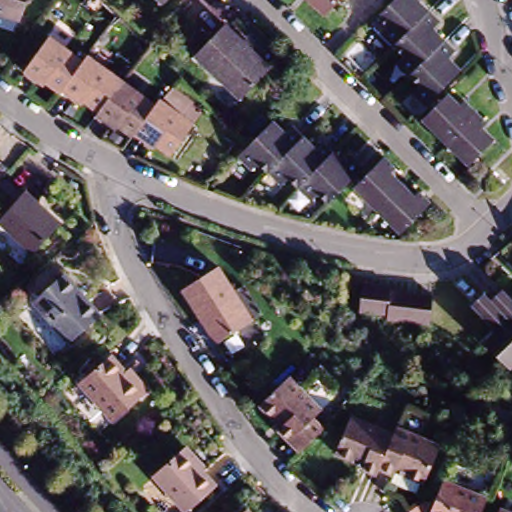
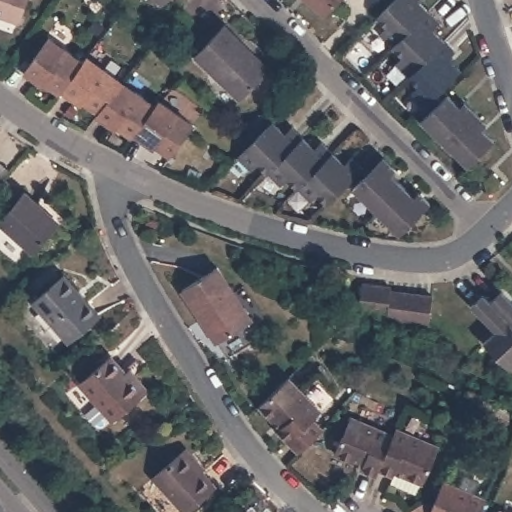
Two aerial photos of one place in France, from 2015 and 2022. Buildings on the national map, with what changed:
unchanged [(0,20),(0,0),(29,0),(19,26),(0,20)]
unchanged [(157,0),(168,0),(162,5),(157,0)]
unchanged [(301,0),(335,0),(320,16),(301,0)]
unchanged [(437,29),(432,35),(453,57),(447,63),(457,75),(422,109),(412,98),(418,92),(396,70),(402,64),(377,39),(384,31),(372,19),(375,16),(392,0),(415,0),(412,3),(437,29)]
unchanged [(240,100),(195,56),(225,24),(271,69),(240,100)]
unchanged [(32,78),(30,81),(17,72),(42,36),(77,60),(56,90),(54,93),(32,78)]
unchanged [(93,111),(72,96),(70,99),(56,90),(77,60),(80,54),(115,79),(93,111)]
unchanged [(151,103),(130,134),(128,136),(107,121),(105,124),(90,115),(93,111),(115,79),(151,103)]
unchanged [(190,122),(167,156),(145,141),(144,144),(130,134),(151,103),(155,98),(190,122)]
unchanged [(467,171),(420,124),(447,98),(460,111),(464,106),(485,128),(481,132),(494,144),(467,171)]
unchanged [(283,132),(290,125),(312,147),(319,141),(340,163),(348,156),(360,168),(325,203),(312,190),(305,197),(283,175),(275,183),(255,161),(248,168),(237,156),(241,151),(251,141),(272,120),(283,132)]
unchanged [(399,233),(350,187),(380,156),(392,167),(388,172),(414,196),(418,191),(429,202),(399,233)]
unchanged [(33,254),(0,224),(0,220),(25,191),(60,223),(33,254)]
unchanged [(217,345),(205,328),(207,326),(204,320),(201,322),(180,292),(216,269),(252,322),(217,345)]
unchanged [(29,301),(62,273),(97,316),(67,344),(29,301)]
unchanged [(429,328),(387,322),(387,320),(359,315),(362,288),(390,292),(390,293),(432,300),(429,328)]
unchanged [(477,342),(489,330),(465,305),(477,293),(485,301),(498,290),(512,305),(512,358),(501,368),(477,342)]
unchanged [(78,385),(110,357),(125,375),(130,371),(147,391),(143,395),(112,423),(78,385)]
unchanged [(261,404),(287,379),(319,411),(312,420),(321,430),(315,436),(301,451),(280,429),(282,426),(275,418),(261,404)]
unchanged [(337,451),(351,418),(394,436),(380,467),(378,473),(364,467),(364,464),(355,460),(337,451)]
unchanged [(389,481),(392,472),(380,467),(394,436),(396,430),(439,448),(425,480),(424,480),(419,493),(389,481)]
unchanged [(184,512),(152,477),(184,449),(215,484),(184,512)]
unchanged [(443,479),(486,497),(480,512),(430,512),(443,479)]
unchanged [(497,510),(503,512),(497,512),(497,510)]

